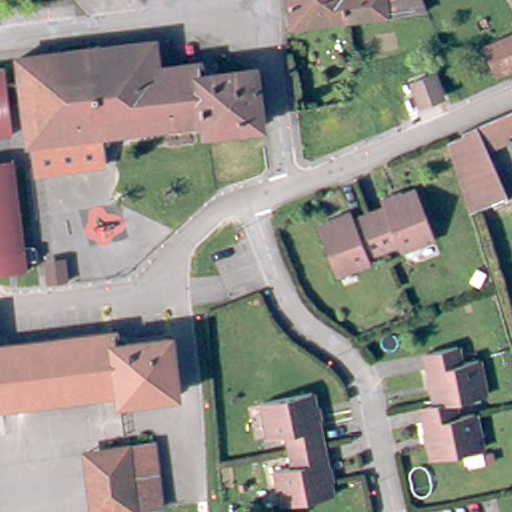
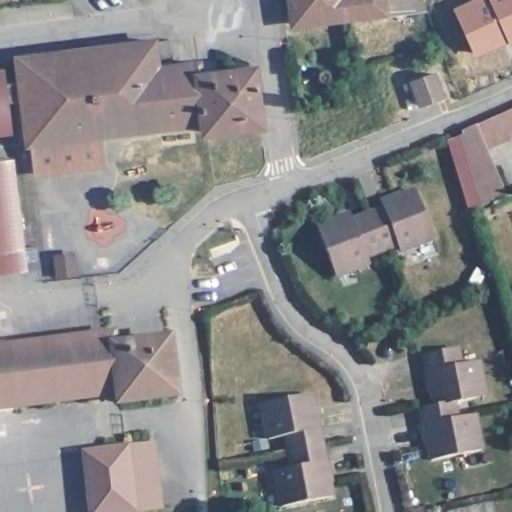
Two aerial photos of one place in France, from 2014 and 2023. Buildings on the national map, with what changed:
unchanged [(382,10),(292,20),(289,0),(422,0),(425,9),(418,10),(382,14),(382,10)]
new [(510,46),(507,41),(475,56),(452,6),(467,0),(512,0),(512,45),(510,46)]
unchanged [(155,63),(197,60),(198,70),(250,66),(257,121),(204,126),(202,114),(23,132),(19,90),(15,51),(33,49),(152,36),(155,63)]
unchanged [(0,136),(0,68),(3,67),(11,135),(0,136)]
unchanged [(435,107),(410,115),(403,91),(427,84),(435,107)]
unchanged [(202,114),(204,126),(257,121),(261,128),(202,136),(200,126),(102,138),(106,166),(35,176),(31,147),(25,148),(23,132),(202,114)]
unchanged [(461,140),(512,118),(512,146),(490,156),(504,189),(468,205),(449,146),(461,140)]
unchanged [(0,274),(0,161),(13,159),(25,250),(27,271),(0,274)]
unchanged [(387,212),(385,206),(420,193),(437,239),(403,254),(400,245),(385,251),(372,218),(387,212)]
unchanged [(355,219),(357,224),(372,218),(385,251),(370,257),(373,265),(339,280),(320,231),(355,219)]
unchanged [(118,350),(172,345),(177,402),(123,406),(122,396),(0,406),(0,347),(117,338),(118,350)]
unchanged [(440,404),(430,352),(462,345),(465,361),(482,358),(491,393),(459,400),(440,404)]
unchanged [(290,435),(272,437),(265,402),(315,391),(325,443),(292,450),(290,435)]
unchanged [(437,458),(427,406),(440,404),(459,400),(462,411),(479,407),(487,447),(437,458)]
unchanged [(335,495),(285,505),(278,470),(295,466),(292,450),(325,443),(335,495)]
unchanged [(159,445),(164,507),(138,510),(134,446),(159,445)]
unchanged [(107,512),(88,512),(83,450),(134,446),(138,510),(107,512)]

